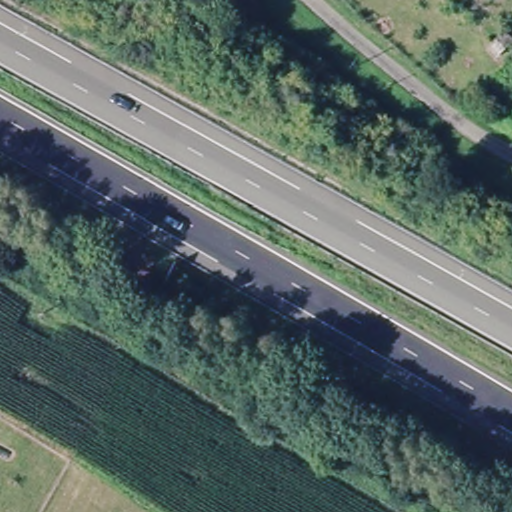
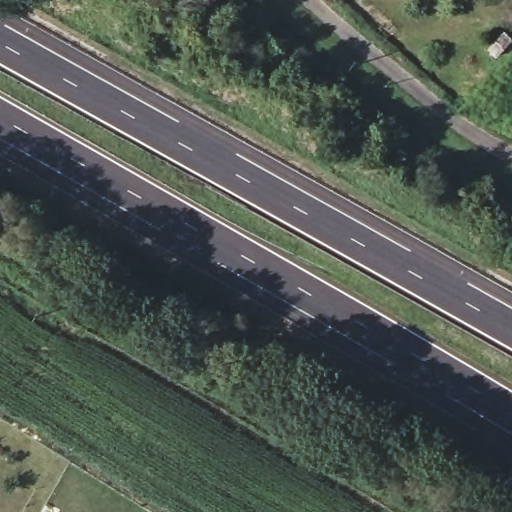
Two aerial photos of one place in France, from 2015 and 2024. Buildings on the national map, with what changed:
[]

